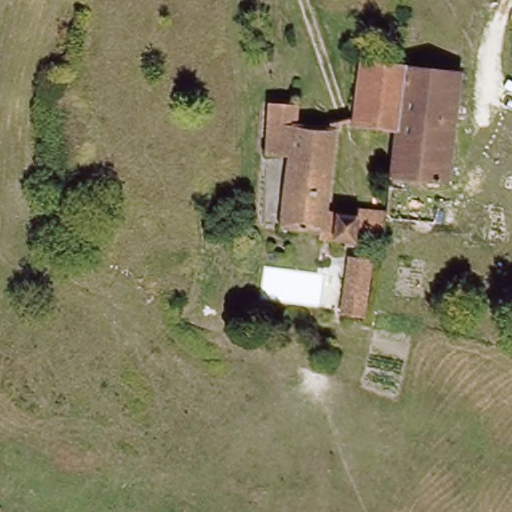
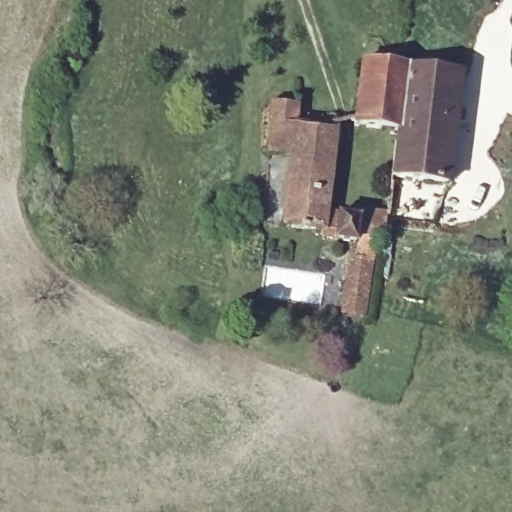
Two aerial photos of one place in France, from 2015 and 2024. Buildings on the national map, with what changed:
unchanged [(352,124),(358,60),(398,65),(392,128),(352,124)]
unchanged [(392,128),(398,65),(461,70),(446,179),(387,172),(392,128)]
unchanged [(346,260),(347,245),(321,240),(321,234),(273,227),(278,161),(262,160),(257,159),(261,125),(327,134),(322,215),(378,225),(376,242),(366,240),(362,262),(346,260)]
unchanged [(360,268),(354,317),(336,313),(341,264),(360,268)]

